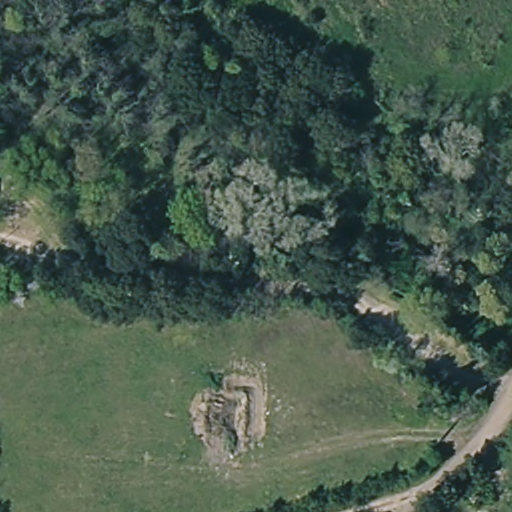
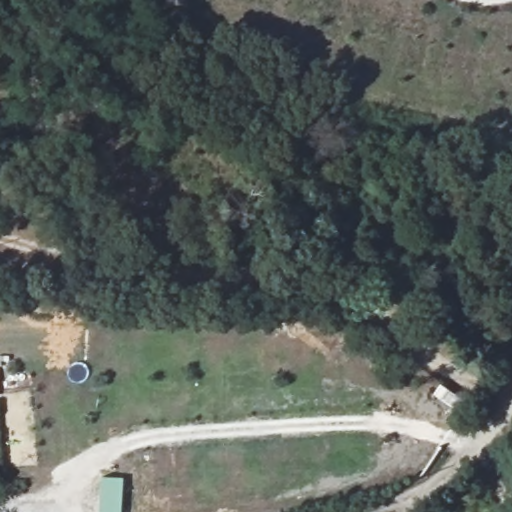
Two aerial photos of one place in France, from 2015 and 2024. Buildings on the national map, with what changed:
new [(123,477),(121,512),(100,512),(103,477),(123,477)]

